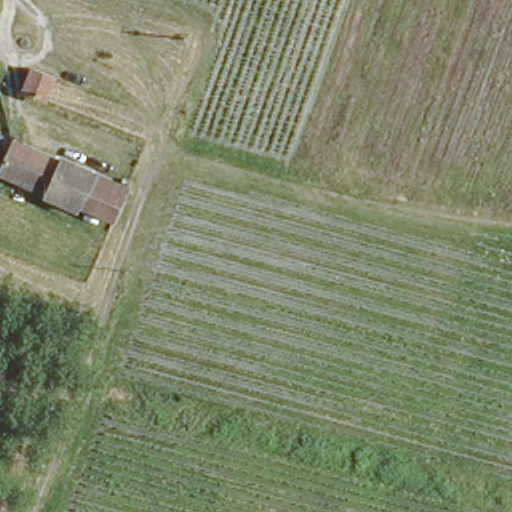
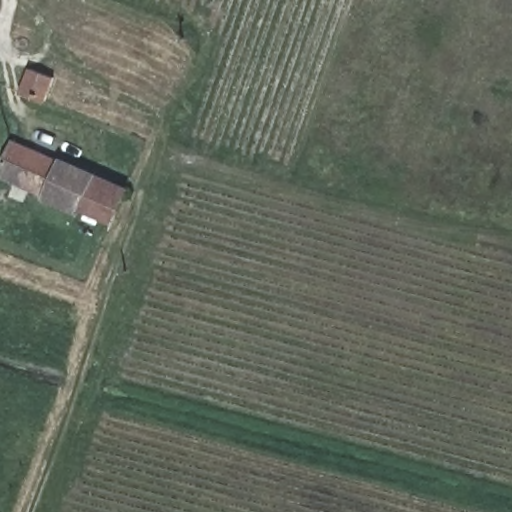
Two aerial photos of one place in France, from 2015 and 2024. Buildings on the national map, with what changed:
unchanged [(54,72),(46,100),(20,92),(30,64),(54,72)]
unchanged [(95,214),(74,205),(71,211),(40,200),(41,193),(0,175),(0,156),(6,140),(54,162),(56,158),(105,177),(104,181),(121,187),(110,220),(95,214)]

